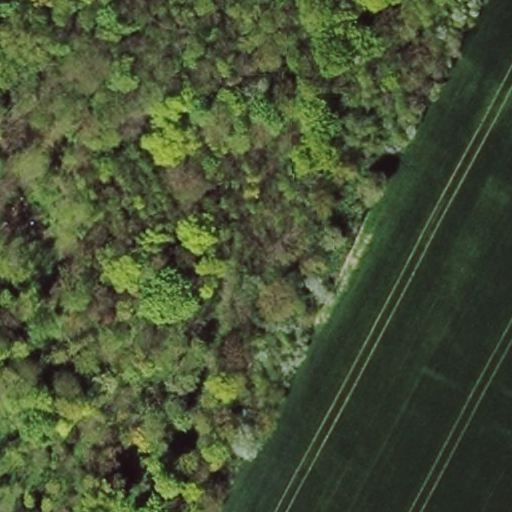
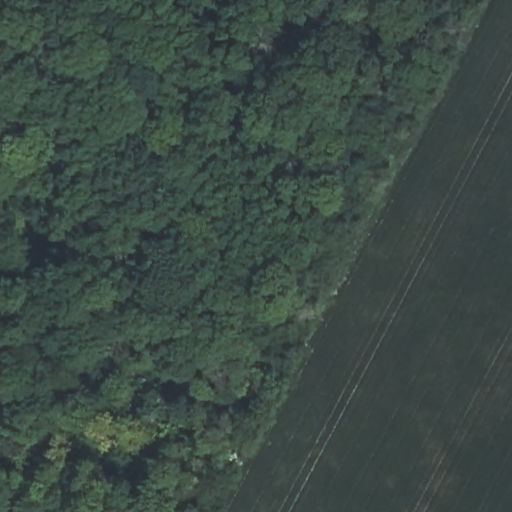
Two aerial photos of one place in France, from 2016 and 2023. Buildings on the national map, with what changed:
[]

